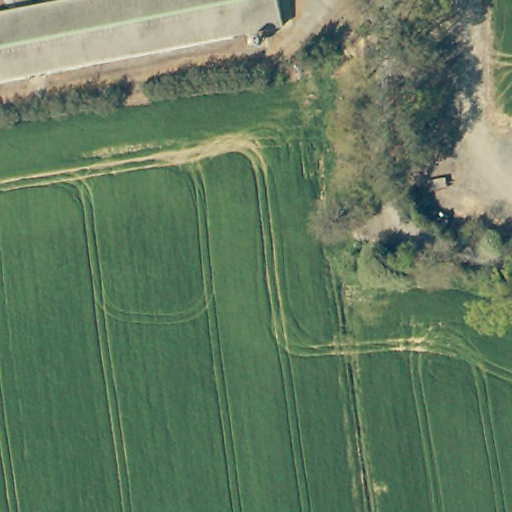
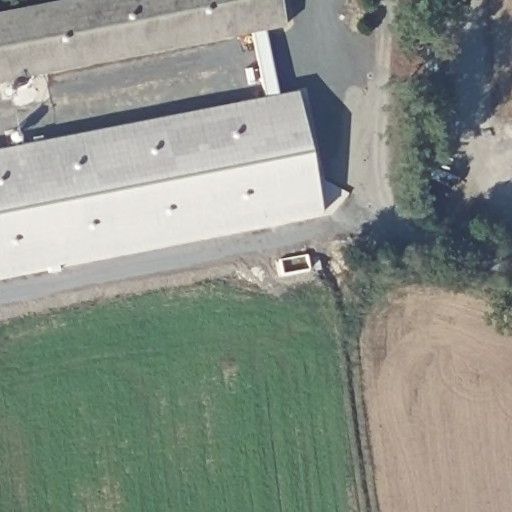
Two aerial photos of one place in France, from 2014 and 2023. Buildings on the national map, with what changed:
unchanged [(70,0),(278,0),(284,29),(0,82),(0,13),(70,0)]
new [(322,217),(0,279),(0,150),(296,92),(322,217)]

